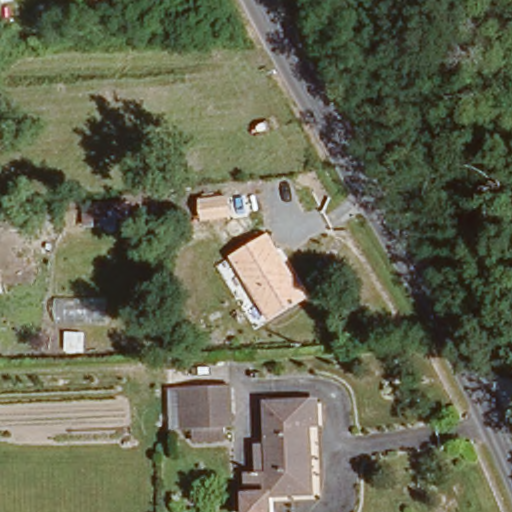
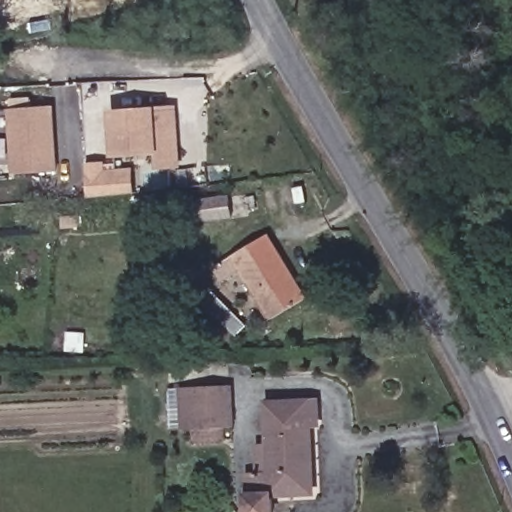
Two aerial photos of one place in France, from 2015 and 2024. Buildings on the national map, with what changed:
new [(12,173),(7,109),(53,106),(58,170),(12,173)]
new [(157,166),(156,152),(117,154),(114,112),(174,107),(178,165),(157,166)]
new [(91,176),(91,171),(133,169),(135,194),(88,197),(87,176),(91,176)]
unchanged [(225,250),(262,231),(297,297),(261,315),(225,250)]
unchanged [(167,387),(219,387),(220,427),(169,428),(167,387)]
unchanged [(275,512),(251,512),(249,472),(273,472),(269,402),(319,402),(320,422),(310,422),(312,492),(273,493),(275,512)]

